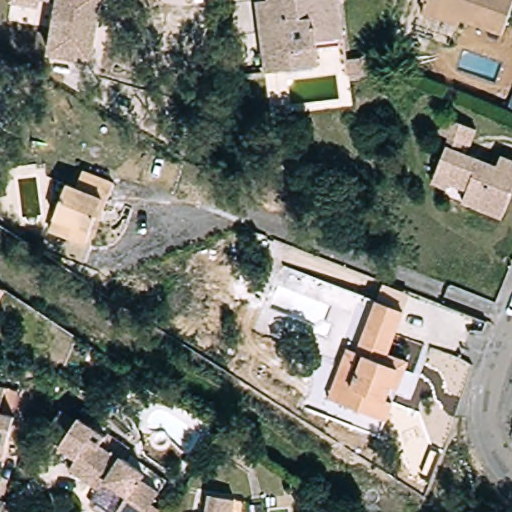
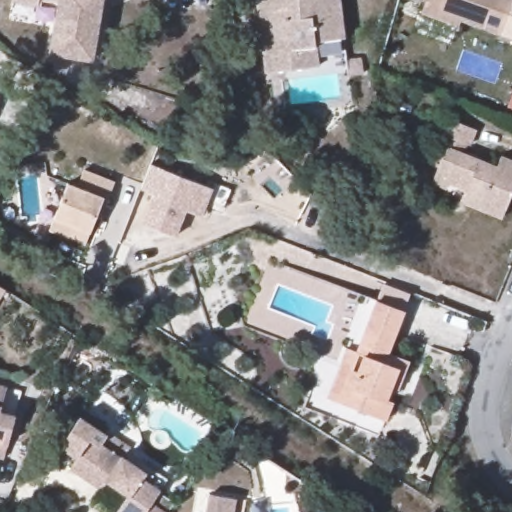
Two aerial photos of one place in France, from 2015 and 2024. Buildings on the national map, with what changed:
unchanged [(57,0),(100,0),(91,53),(50,46),(57,0)]
unchanged [(260,0),(341,0),(345,34),(316,37),(320,63),(269,69),(260,0)]
unchanged [(422,11),(425,3),(421,1),(418,0),(512,0),(512,4),(502,34),(461,19),(459,25),(422,11)]
unchanged [(430,184),(436,169),(448,140),(438,136),(445,120),(475,132),(469,147),(467,146),(462,156),(497,170),(501,159),(512,163),(512,192),(502,219),(462,204),(467,192),(446,183),(444,189),(430,184)]
unchanged [(0,143),(0,133),(3,135),(0,143)]
new [(213,188),(201,216),(187,211),(176,236),(143,223),(155,194),(141,189),(151,164),(213,188)]
unchanged [(46,229),(50,216),(63,183),(73,186),(78,169),(109,181),(96,216),(91,214),(85,230),(81,242),(46,229)]
unchanged [(306,225),(313,212),(329,220),(323,233),(306,225)]
unchanged [(0,287),(5,290),(0,297),(0,287)]
unchanged [(392,403),(384,422),(327,399),(347,349),(357,353),(377,303),(383,288),(409,298),(403,313),(386,357),(400,362),(407,365),(392,403)]
unchanged [(0,409),(0,381),(6,383),(0,409)]
unchanged [(0,409),(15,413),(3,456),(0,455),(0,409)]
unchanged [(170,512),(128,512),(138,498),(118,484),(111,494),(80,472),(88,461),(70,448),(71,447),(56,438),(73,413),(87,423),(90,420),(117,439),(110,448),(128,460),(130,457),(153,474),(150,480),(169,493),(161,505),(170,512)]
unchanged [(210,496),(236,500),(233,512),(207,512),(210,496)]

